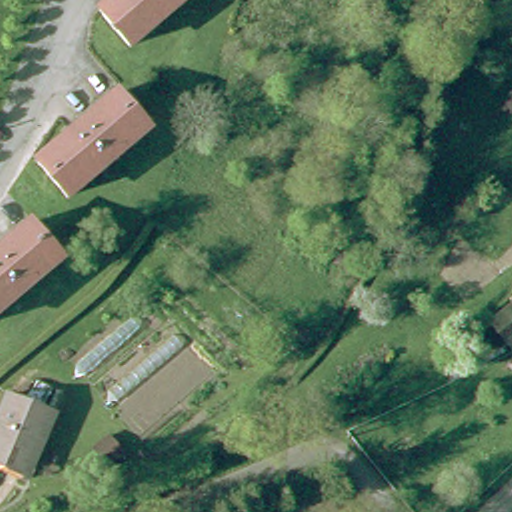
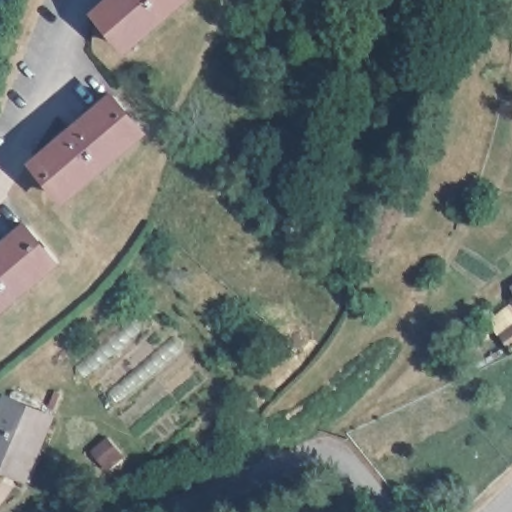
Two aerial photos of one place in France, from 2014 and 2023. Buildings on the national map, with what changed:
unchanged [(112,0),(183,0),(123,50),(94,15),(112,0)]
unchanged [(136,129),(61,195),(31,161),(105,96),(136,129)]
unchanged [(0,300),(0,239),(13,228),(43,260),(0,300)]
unchanged [(512,289),(512,294),(509,291),(512,289)]
unchanged [(0,398),(44,416),(18,479),(0,471),(0,398)]
unchanged [(111,483),(108,479),(94,464),(108,450),(121,464),(125,468),(111,483)]

